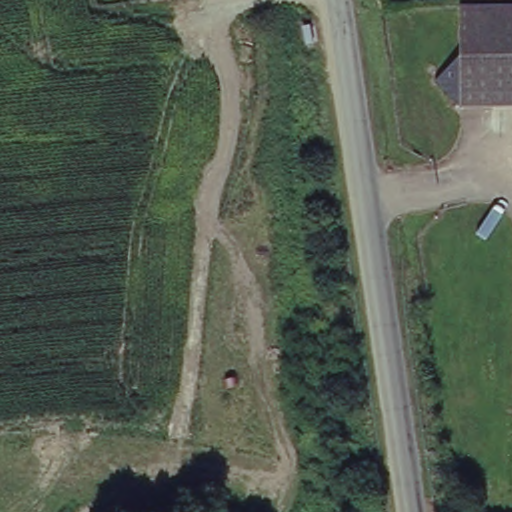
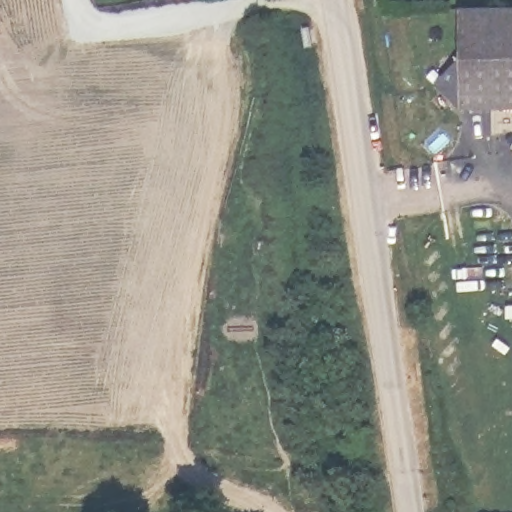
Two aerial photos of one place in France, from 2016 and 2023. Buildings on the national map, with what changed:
unchanged [(512,108),(463,109),(430,82),(460,61),(460,7),(512,8),(512,108)]

